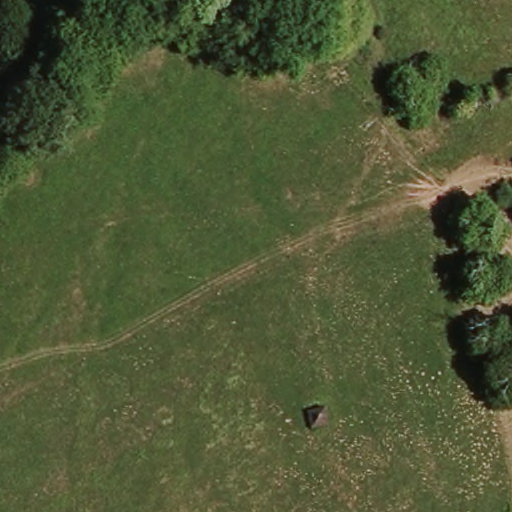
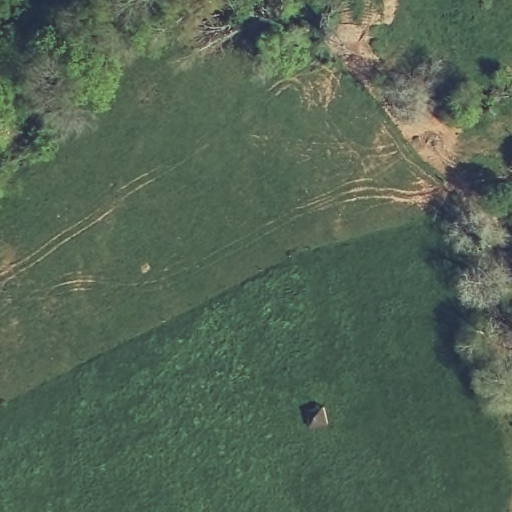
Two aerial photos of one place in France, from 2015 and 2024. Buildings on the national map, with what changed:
unchanged [(312,427),(310,410),(327,407),(330,423),(312,427)]

